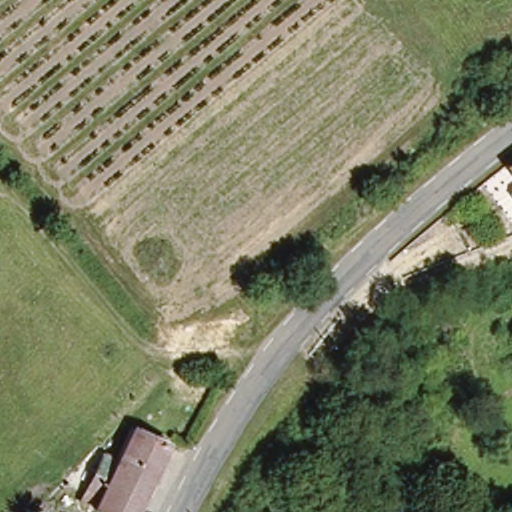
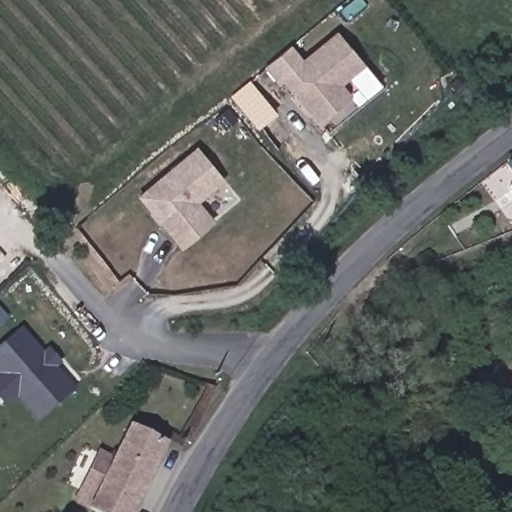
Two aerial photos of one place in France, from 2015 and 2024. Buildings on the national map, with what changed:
new [(318,124),(285,83),(280,86),(265,68),(292,45),(305,59),(338,31),(365,65),(343,84),(352,95),(318,124)]
new [(180,249),(137,197),(197,146),(226,182),(200,203),(215,222),(180,249)]
unchanged [(512,162),(512,173),(506,166),(512,162)]
new [(17,398),(6,407),(0,400),(0,346),(22,327),(44,351),(48,347),(62,363),(57,367),(76,390),(38,423),(17,398)]
unchanged [(89,481),(86,480),(98,456),(113,462),(128,429),(165,446),(132,512),(92,512),(88,510),(77,504),(81,495),(89,481)]

